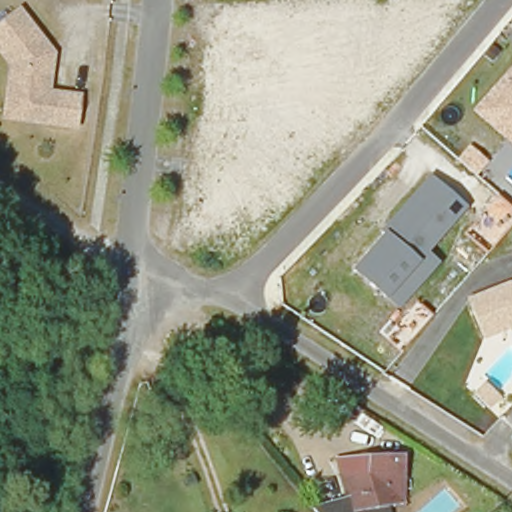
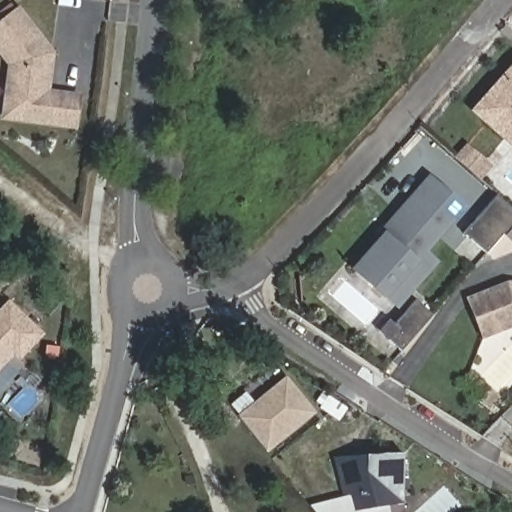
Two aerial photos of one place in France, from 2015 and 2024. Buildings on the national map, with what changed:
unchanged [(4,104),(9,67),(0,55),(0,25),(17,12),(50,56),(45,94),(76,98),(73,129),(40,124),(1,118),(4,104)]
unchanged [(512,67),(512,145),(474,110),(512,67)]
unchanged [(431,254),(441,262),(402,309),(353,267),(428,175),(468,207),(431,254)]
new [(512,207),(512,226),(488,254),(465,233),(498,195),(512,207)]
unchanged [(482,341),(465,297),(508,281),(512,282),(512,330),(511,330),(482,341)]
new [(0,370),(0,309),(10,298),(47,333),(20,360),(15,355),(0,370)]
new [(290,379),(317,414),(270,452),(242,417),(290,379)]
unchanged [(335,456),(406,452),(405,503),(390,506),(390,512),(316,512),(311,506),(345,497),(335,456)]

